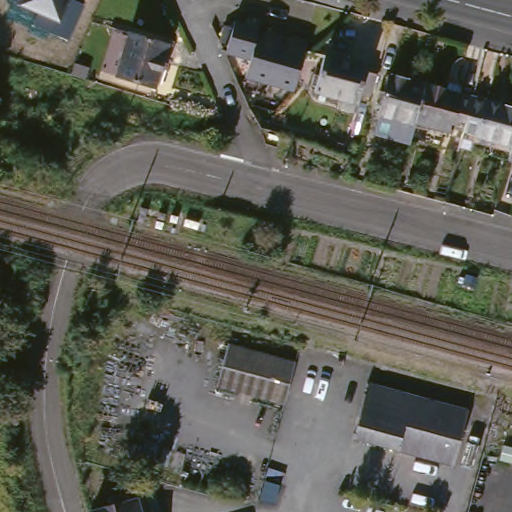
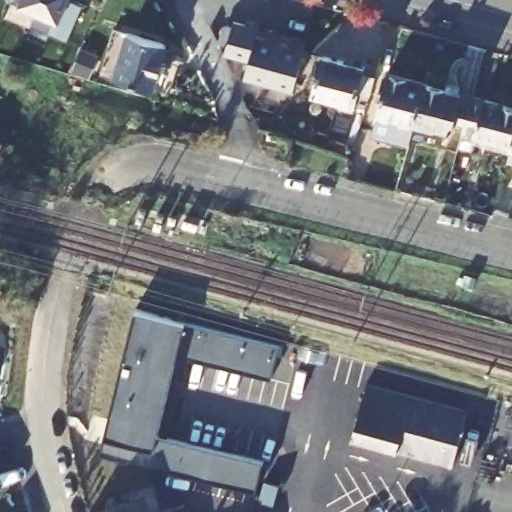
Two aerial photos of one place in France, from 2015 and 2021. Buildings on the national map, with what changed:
unchanged [(28,25),(33,13),(17,7),(11,0),(71,0),(84,5),(69,41),(28,25)]
unchanged [(244,80),(249,62),(225,55),(227,48),(220,46),(225,28),(232,30),(234,24),(245,28),(247,20),(260,24),(255,39),(262,41),(265,34),(282,39),(280,47),(287,49),(289,42),(306,47),(302,58),(292,94),(272,88),(244,80)]
unchanged [(137,39),(175,50),(161,94),(123,82),(137,39)]
unchanged [(327,53),(381,68),(374,92),(362,89),(356,109),(343,105),(346,97),(317,90),(327,53)]
unchanged [(392,77),(427,86),(414,132),(412,139),(410,148),(373,138),(376,128),(392,77)]
unchanged [(449,92),(448,94),(476,103),(467,135),(456,131),(455,136),(419,125),(417,133),(414,132),(427,86),(449,92)]
unchanged [(476,103),(488,106),(490,102),(512,109),(512,149),(479,139),(479,138),(467,135),(476,103)]
unchanged [(510,165),(512,158),(512,166),(510,165)]
unchanged [(511,201),(512,202),(512,219),(507,217),(511,201)]
new [(102,453),(106,436),(136,309),(184,323),(278,347),(270,377),(177,351),(157,436),(262,463),(256,491),(102,453)]
demolished [(228,346),(296,363),(287,404),(220,387),(228,346)]
unchanged [(371,385),(470,412),(455,465),(357,439),(371,385)]
unchanged [(135,496),(139,512),(95,512),(94,507),(135,496)]

